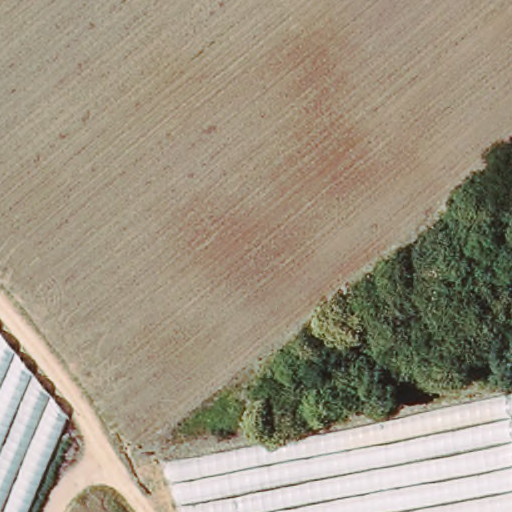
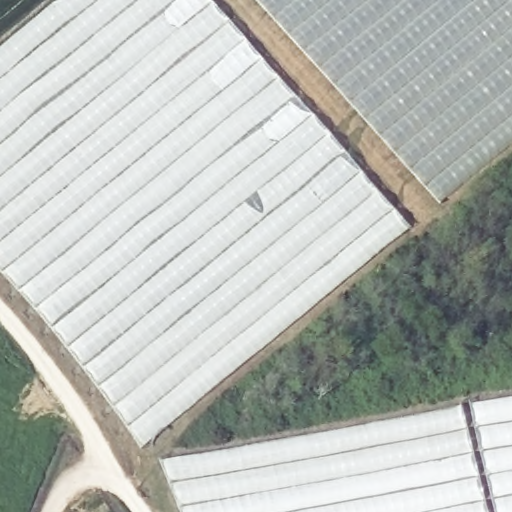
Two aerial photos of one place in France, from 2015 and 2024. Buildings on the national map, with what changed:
demolished [(232,371),(135,447),(42,321),(0,276),(0,0),(512,0),(512,139),(444,194),(232,371)]
new [(231,448),(327,431),(467,402),(512,395),(512,512),(179,512),(172,497),(160,461),(195,455),(231,448)]

